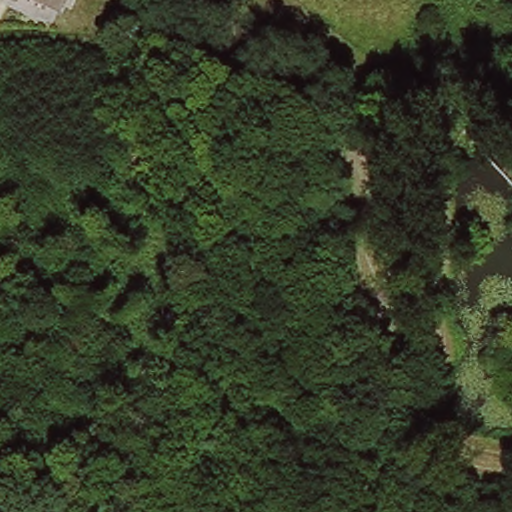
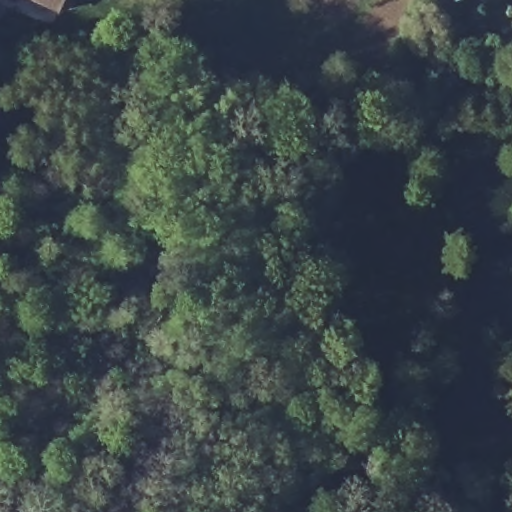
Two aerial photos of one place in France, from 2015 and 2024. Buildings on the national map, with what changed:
unchanged [(64,0),(62,5),(51,0),(64,0)]

